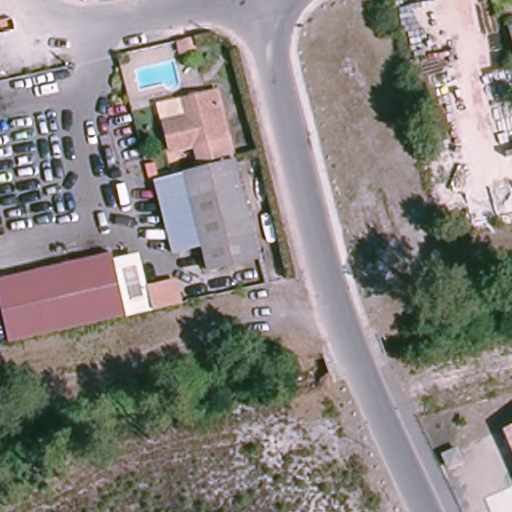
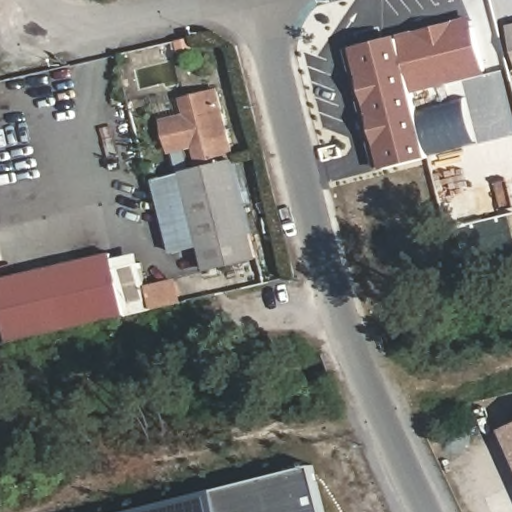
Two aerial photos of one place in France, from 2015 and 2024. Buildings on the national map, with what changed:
new [(469,20),(482,71),(412,90),(429,158),(387,169),(380,170),(350,52),(357,50),(469,20)]
unchanged [(512,29),(512,52),(506,30),(512,29)]
unchanged [(190,41),(191,41),(194,53),(180,57),(177,44),(190,41)]
unchanged [(232,155),(198,164),(194,147),(170,152),(163,124),(188,118),(186,112),(183,99),(205,94),(216,91),(232,155)]
unchanged [(258,260),(207,273),(200,246),(172,254),(154,182),(233,162),(258,260)]
unchanged [(107,257),(121,314),(8,341),(0,307),(0,282),(107,257)]
unchanged [(154,312),(148,290),(174,284),(179,306),(154,312)]
unchanged [(512,462),(497,430),(512,423),(512,462)]
new [(312,464),(324,512),(121,512),(213,489),(312,464)]

